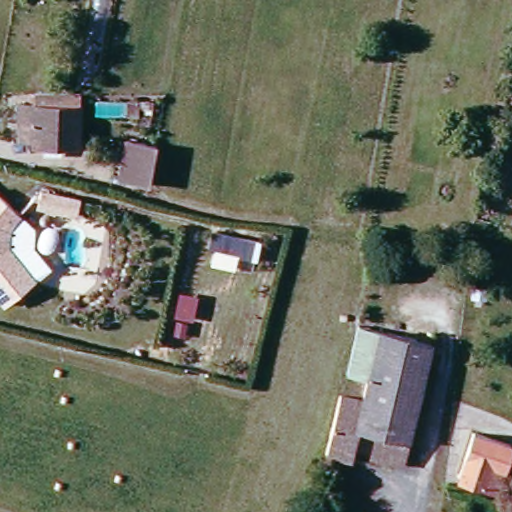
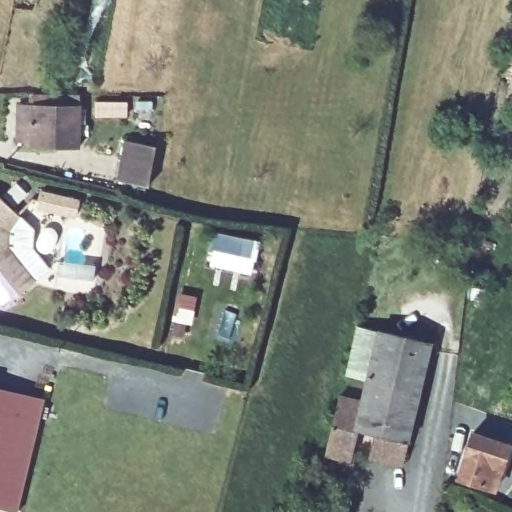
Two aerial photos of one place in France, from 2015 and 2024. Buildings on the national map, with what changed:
unchanged [(69,94),(78,94),(77,145),(30,145),(30,140),(15,140),(16,105),(30,105),(31,94),(69,94)]
unchanged [(95,101),(125,102),(124,116),(95,115),(95,101)]
unchanged [(117,180),(124,142),(153,147),(147,185),(117,180)]
new [(42,191),(81,200),(77,215),(38,205),(42,191)]
unchanged [(10,226),(9,246),(36,280),(6,305),(0,297),(0,194),(22,212),(10,226)]
new [(209,264),(212,252),(207,251),(211,237),(215,238),(217,230),(259,241),(251,275),(209,264)]
unchanged [(406,440),(353,427),(346,458),(325,453),(340,395),(360,400),(371,354),(351,348),(356,325),(377,329),(429,342),(406,440)]
new [(18,511),(0,507),(0,388),(44,400),(18,511)]
unchanged [(472,433),(507,445),(492,488),(458,477),(472,433)]

